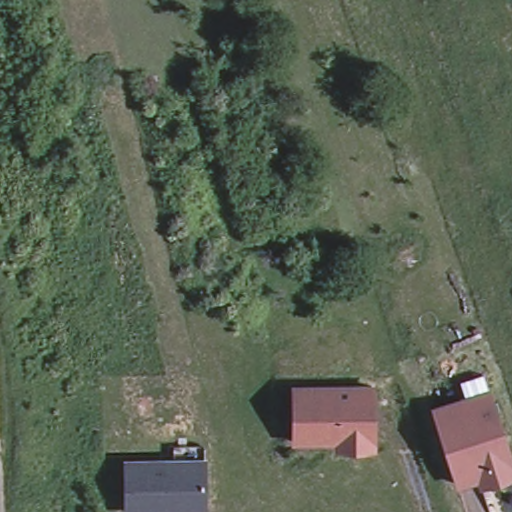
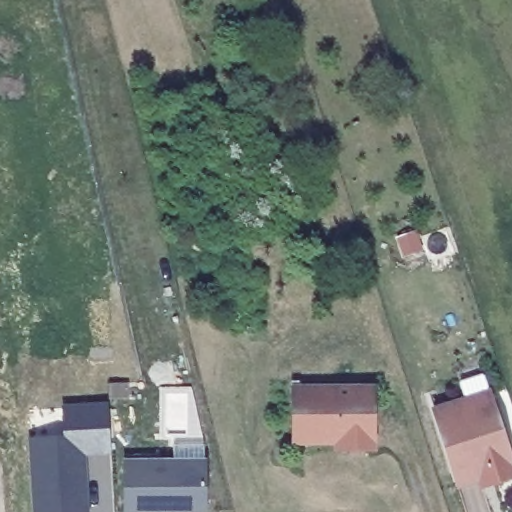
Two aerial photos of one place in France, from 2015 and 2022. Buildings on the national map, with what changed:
unchanged [(337,444),(299,444),(294,444),(294,428),(294,390),(365,390),(372,390),(372,412),(373,451),(348,451),(337,451),(337,444)]
unchanged [(478,477),(457,484),(435,413),(465,404),(468,403),(490,396),(492,402),(512,464),(512,474),(492,480),(490,481),(480,484),(478,477)]
new [(112,454),(87,456),(90,512),(32,512),(28,438),(62,433),(61,405),(107,402),(112,454)]
unchanged [(204,512),(127,512),(127,464),(160,464),(174,464),(174,448),(204,449),(204,512)]

